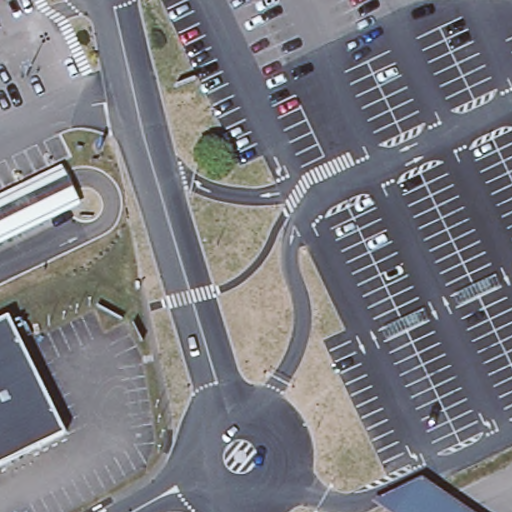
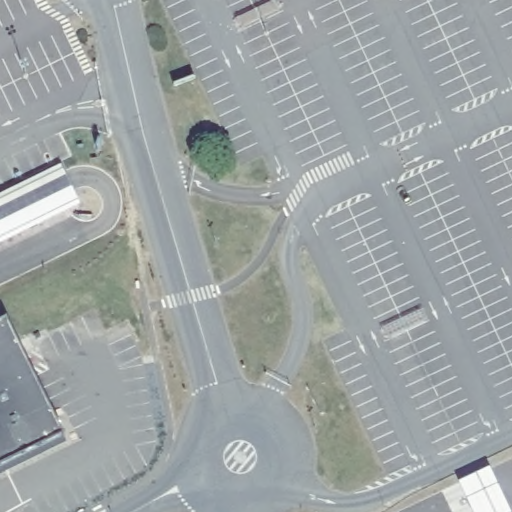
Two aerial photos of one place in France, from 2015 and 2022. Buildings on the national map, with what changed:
unchanged [(65,171),(80,202),(46,219),(31,187),(65,171)]
unchanged [(0,202),(31,187),(46,219),(0,241),(0,202)]
unchanged [(62,435),(0,465),(0,322),(5,319),(62,435)]
unchanged [(377,512),(369,507),(421,480),(468,512),(377,512)]

